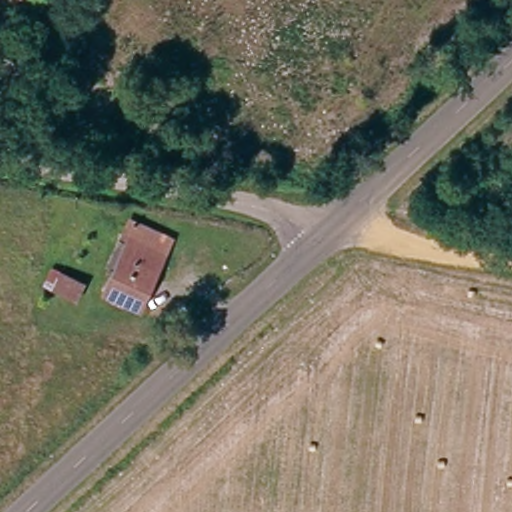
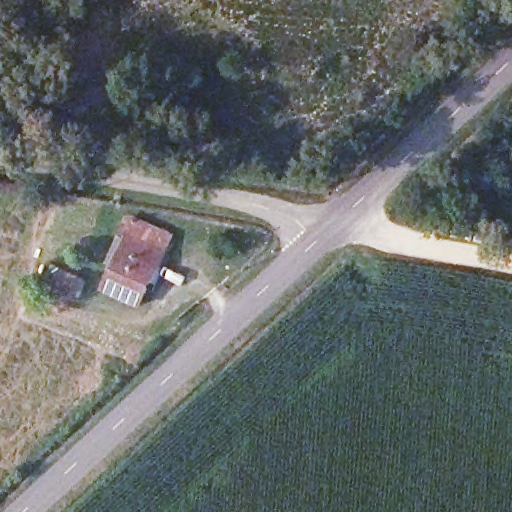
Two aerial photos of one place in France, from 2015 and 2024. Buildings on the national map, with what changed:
unchanged [(169,237),(135,305),(101,287),(127,236),(118,232),(127,216),(169,237)]

